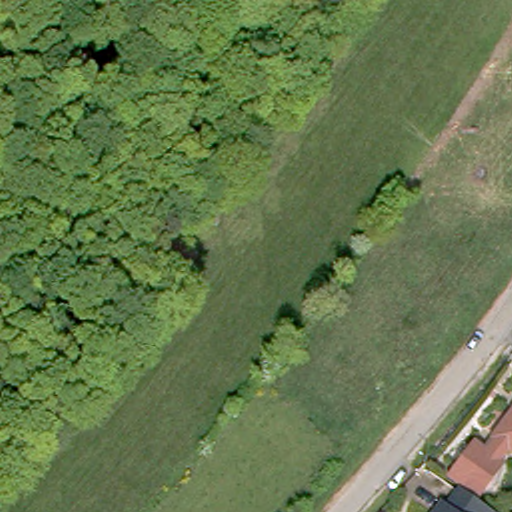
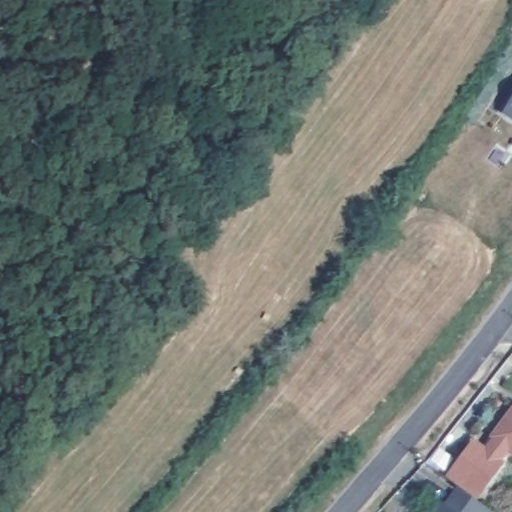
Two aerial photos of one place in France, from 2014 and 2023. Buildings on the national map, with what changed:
new [(502,114),(512,97),(512,120),(502,114)]
unchanged [(511,444),(494,431),(512,407),(512,444),(511,444)]
unchanged [(511,444),(501,458),(506,461),(477,498),(457,483),(446,475),(474,438),(484,444),(494,431),(511,444)]
unchanged [(477,498),(497,512),(428,512),(440,497),(446,500),(457,483),(477,498)]

